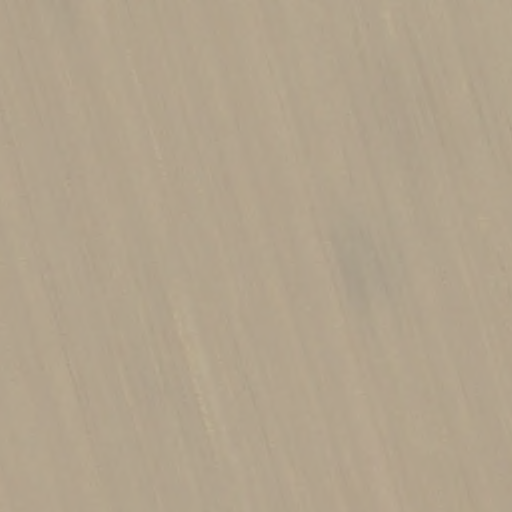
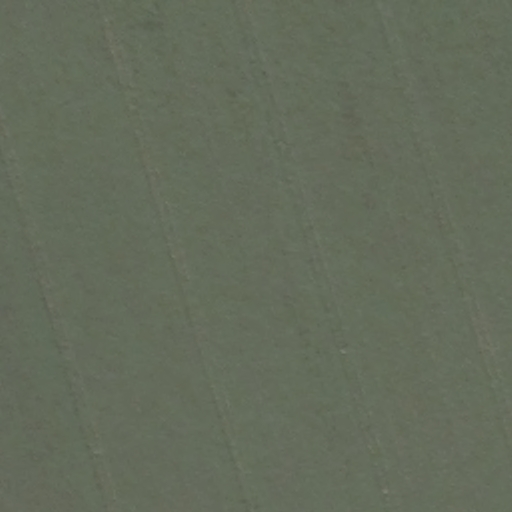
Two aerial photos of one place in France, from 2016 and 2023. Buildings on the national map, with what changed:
[]

